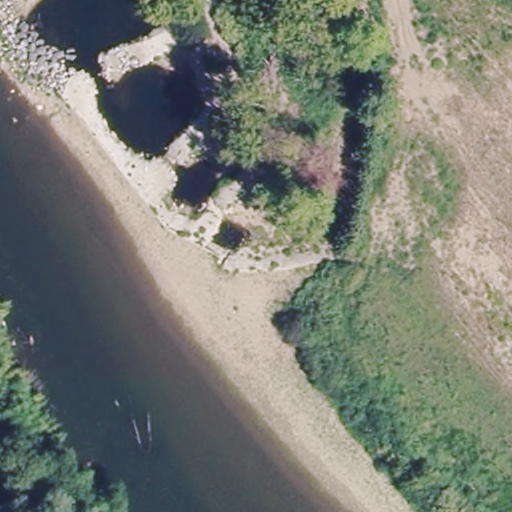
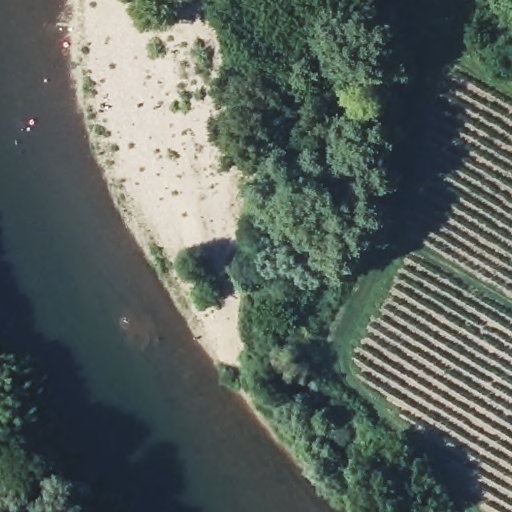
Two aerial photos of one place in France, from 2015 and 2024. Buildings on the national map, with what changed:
[]

